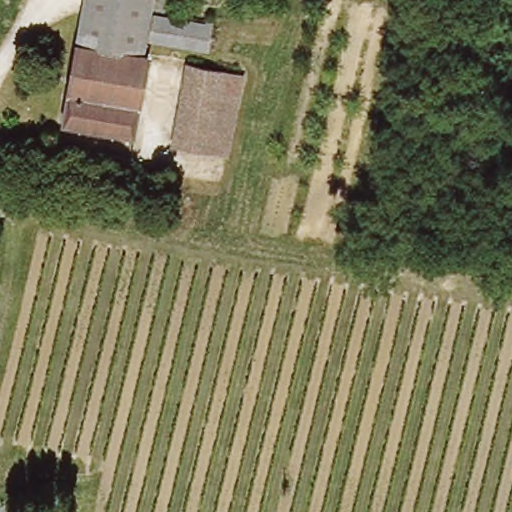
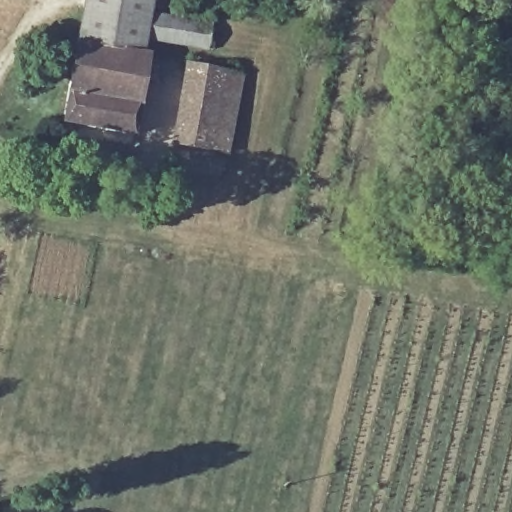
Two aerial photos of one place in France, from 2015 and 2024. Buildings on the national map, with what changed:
unchanged [(66,120),(87,0),(113,0),(151,6),(144,55),(148,56),(135,133),(66,120)]
unchanged [(113,0),(152,0),(151,6),(113,0)]
unchanged [(203,21),(205,14),(213,15),(209,45),(152,37),(155,14),(203,21)]
unchanged [(174,140),(190,62),(220,68),(225,68),(210,147),(174,140)]
unchanged [(227,151),(210,147),(225,68),(242,71),(227,151)]

